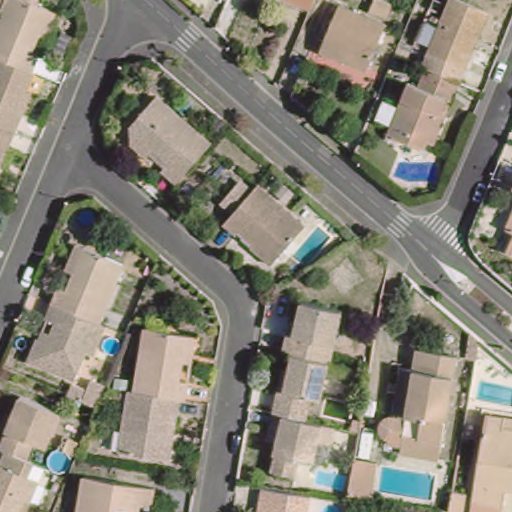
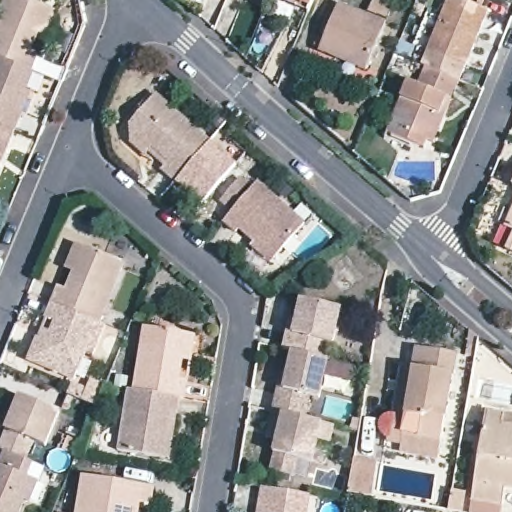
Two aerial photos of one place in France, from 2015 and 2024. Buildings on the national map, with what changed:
unchanged [(0,54),(0,24),(7,6),(0,4),(0,0),(36,0),(53,7),(44,31),(35,50),(43,51),(34,68),(0,54)]
unchanged [(285,0),(310,0),(306,8),(285,0)]
unchanged [(480,14),(454,84),(416,70),(441,0),(480,14)]
unchanged [(314,48),(334,1),(382,19),(365,66),(349,60),(333,54),(327,70),(309,64),(314,48)]
unchanged [(34,68),(28,91),(20,111),(27,114),(18,131),(0,124),(0,54),(34,68)]
unchanged [(406,66),(416,70),(454,84),(436,128),(427,126),(418,150),(408,154),(379,141),(406,66)]
unchanged [(146,155),(123,136),(156,98),(203,139),(171,177),(161,166),(165,159),(151,149),(146,155)]
unchanged [(0,170),(0,124),(18,131),(8,150),(0,169),(0,170)]
new [(201,206),(171,177),(203,139),(209,144),(211,142),(236,166),(201,206)]
unchanged [(239,231),(226,220),(258,183),(308,228),(279,258),(264,244),(245,225),(239,231)]
unchanged [(512,185),(512,190),(511,189),(512,185)]
unchanged [(512,210),(512,235),(504,231),(512,210)]
unchanged [(512,235),(512,249),(509,248),(512,235)]
unchanged [(61,283),(69,287),(76,272),(68,268),(79,244),(87,247),(128,264),(104,320),(54,300),(61,283)]
unchanged [(29,359),(36,341),(44,344),(53,320),(45,318),(54,300),(104,320),(109,322),(99,348),(93,344),(79,379),(29,359)]
unchanged [(325,361),(293,356),(288,355),(291,338),(296,339),(299,326),(303,304),(341,311),(333,363),(325,361)]
unchanged [(198,335),(194,358),(181,357),(179,379),(188,380),(187,396),(181,396),(136,388),(146,328),(185,333),(198,335)]
unchanged [(391,436),(383,431),(382,424),(384,415),(391,412),(399,411),(408,412),(414,367),(420,367),(424,347),(462,354),(449,440),(447,457),(409,452),(412,441),(391,436)]
unchanged [(293,356),(325,361),(321,400),(313,398),(309,423),(271,418),(276,395),(286,397),(289,374),(293,356)]
unchanged [(93,388),(88,397),(75,391),(79,382),(93,388)]
unchanged [(136,388),(181,396),(179,414),(171,414),(168,433),(175,434),(173,453),(168,453),(168,456),(118,449),(129,387),(136,388)]
unchanged [(62,411),(47,448),(36,443),(28,463),(0,450),(0,443),(7,431),(10,418),(21,396),(62,411)]
unchanged [(474,493),(491,405),(512,408),(512,480),(509,480),(506,499),(474,493)]
unchanged [(281,448),(281,435),(270,433),(271,418),(309,423),(332,428),(331,444),(320,445),(318,465),(304,463),(301,481),(276,477),(279,460),(281,448)]
unchanged [(28,463),(23,476),(34,480),(17,512),(0,512),(0,450),(28,463)]
unchanged [(343,491),(349,460),(369,463),(365,494),(343,491)]
unchanged [(83,476),(141,487),(138,506),(136,512),(77,512),(83,476)]
unchanged [(469,483),(466,507),(452,505),(457,480),(469,483)]

